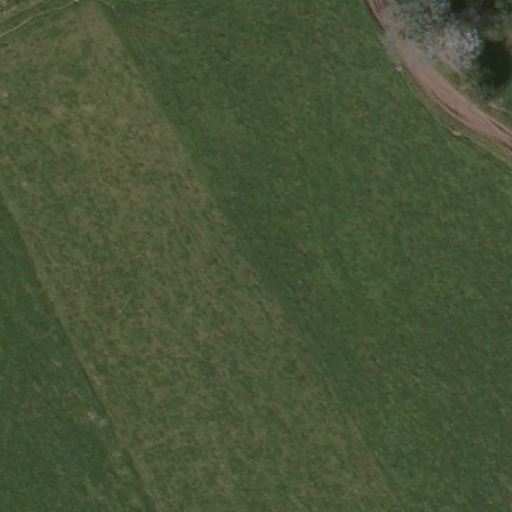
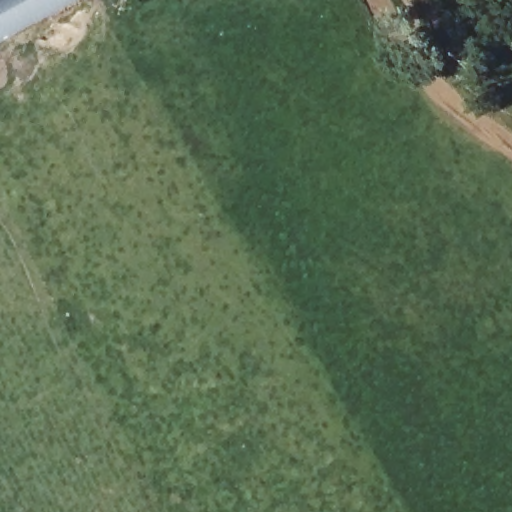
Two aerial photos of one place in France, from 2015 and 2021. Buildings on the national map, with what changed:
new [(64,0),(0,36),(0,0),(64,0)]

